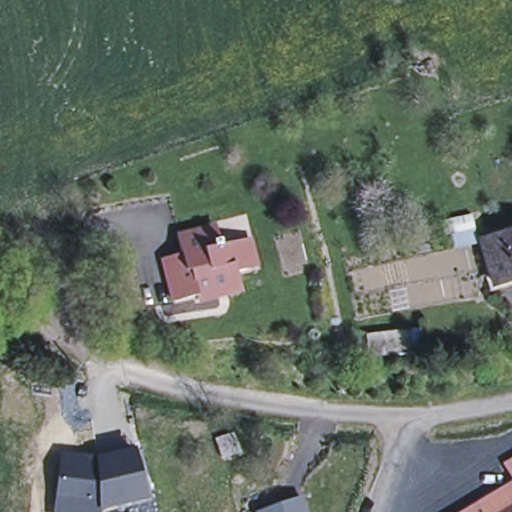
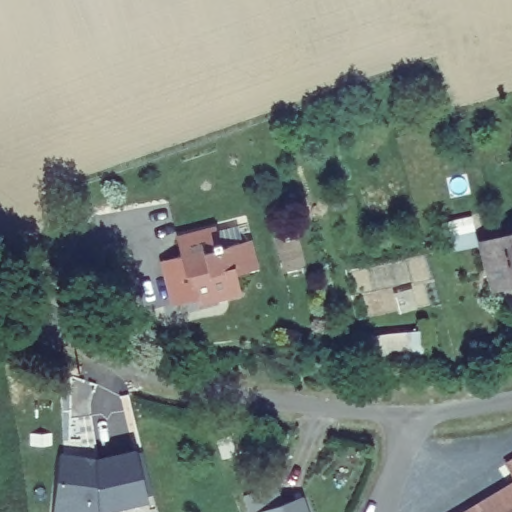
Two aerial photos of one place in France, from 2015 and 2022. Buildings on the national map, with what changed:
unchanged [(473,218),(483,251),(477,252),(452,258),(448,242),(444,242),(440,226),(473,218)]
unchanged [(237,290),(194,302),(192,296),(170,301),(159,258),(176,254),(171,237),(205,227),(209,242),(215,241),(216,245),(232,241),(242,239),(250,266),(240,268),(232,271),(237,290)]
unchanged [(483,251),(512,241),(512,288),(492,294),(477,252),(483,251)]
unchanged [(424,328),(425,353),(368,359),(368,332),(424,328)]
unchanged [(99,463),(99,457),(135,450),(147,496),(105,505),(104,512),(72,512),(72,503),(57,499),(64,455),(99,463)]
unchanged [(512,483),(512,512),(462,512),(487,497),(512,483)]
unchanged [(310,512),(265,512),(305,497),(310,512)]

